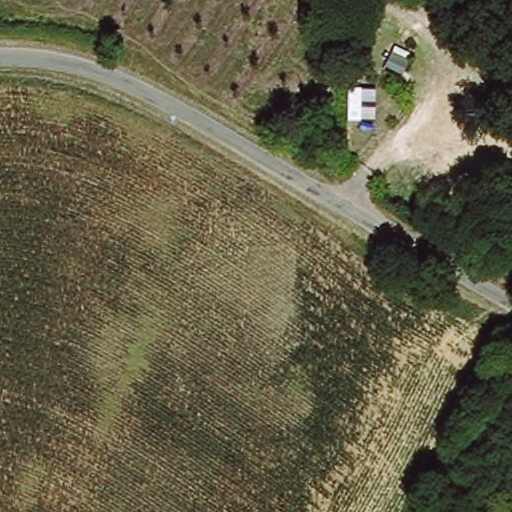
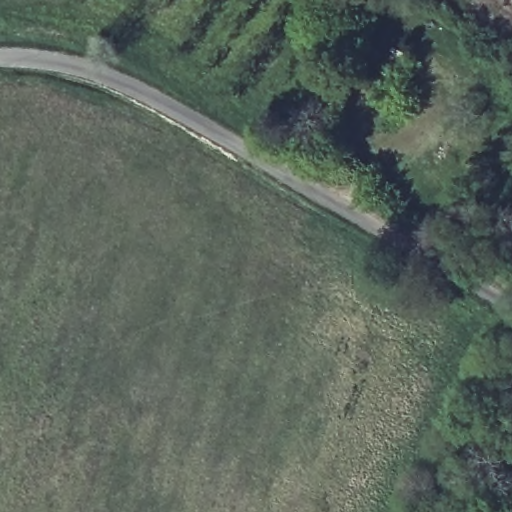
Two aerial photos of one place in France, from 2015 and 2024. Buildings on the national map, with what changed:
unchanged [(373,79),(388,59),(400,69),(385,89),(373,79)]

